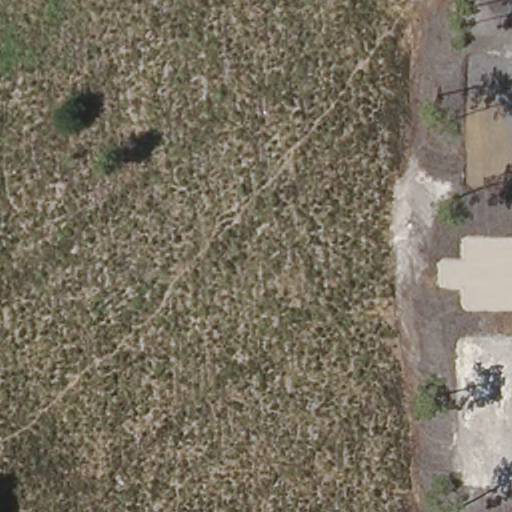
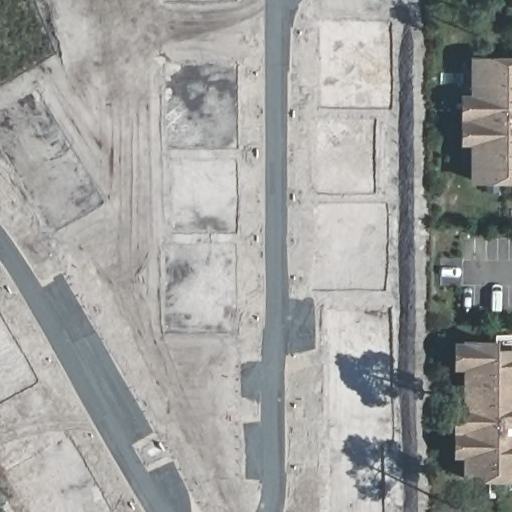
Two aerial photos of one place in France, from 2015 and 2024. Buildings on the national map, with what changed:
new [(470,146),(461,145),(461,94),(470,94),(469,57),(512,57),(512,184),(470,183),(470,146)]
new [(462,458),(453,458),(453,408),(462,409),(462,370),(453,370),(453,342),(462,342),(462,340),(496,340),(497,349),(512,349),(512,481),(462,481),(462,458)]

